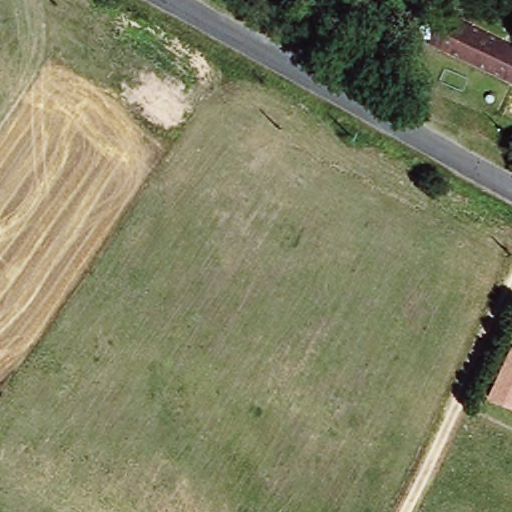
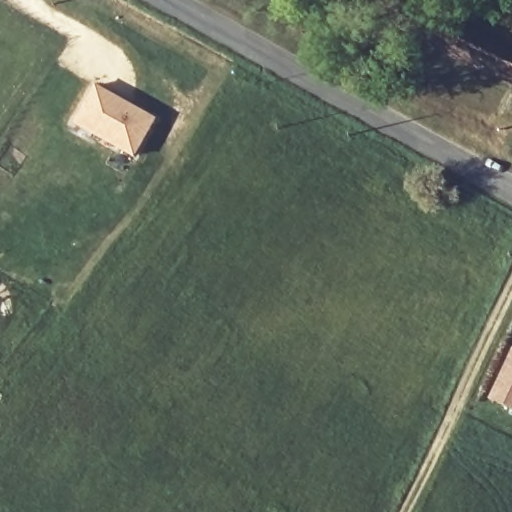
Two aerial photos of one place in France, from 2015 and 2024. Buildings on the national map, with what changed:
unchanged [(425,42),(435,21),(440,11),(445,14),(512,50),(512,88),(430,44),(425,42)]
new [(72,124),(94,85),(154,119),(133,156),(72,124)]
unchanged [(512,348),(512,409),(487,398),(502,365),(509,346),(512,348)]

